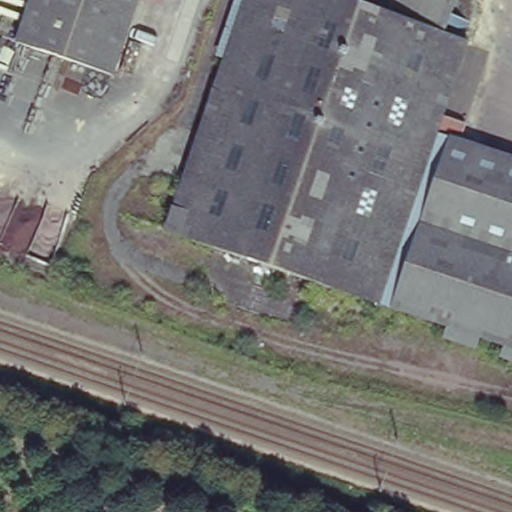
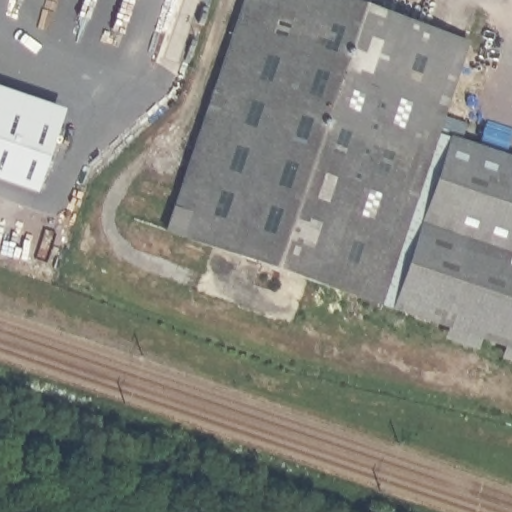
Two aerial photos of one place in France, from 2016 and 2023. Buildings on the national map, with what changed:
demolished [(23,45),(38,0),(140,0),(115,75),(23,45)]
unchanged [(436,136),(512,163),(512,348),(168,231),(177,203),(200,135),(246,0),(332,0),(448,39),(467,45),(436,136)]
unchanged [(461,0),(448,39),(332,0),(461,0)]
new [(23,196),(0,188),(0,88),(53,106),(23,196)]

